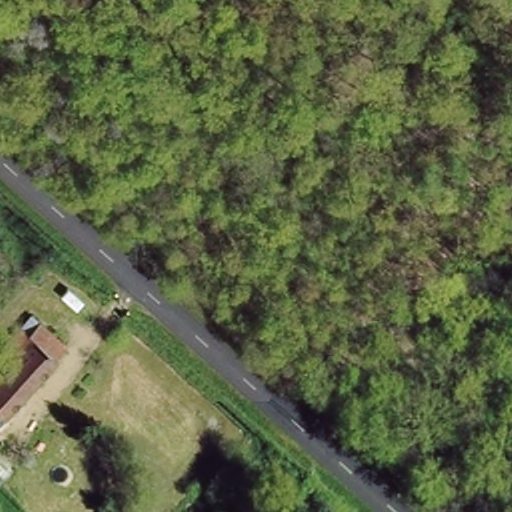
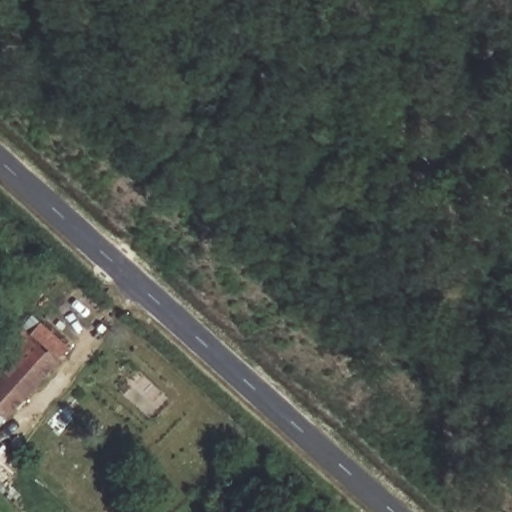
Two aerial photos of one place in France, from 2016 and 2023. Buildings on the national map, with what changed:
unchanged [(18,325),(37,320),(54,336),(45,346),(55,357),(4,410),(0,406),(0,345),(18,325)]

